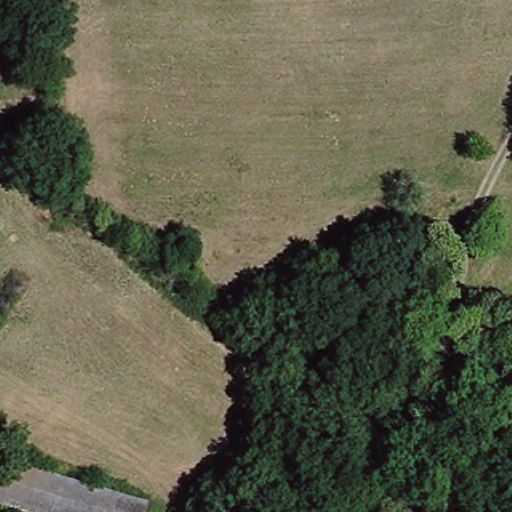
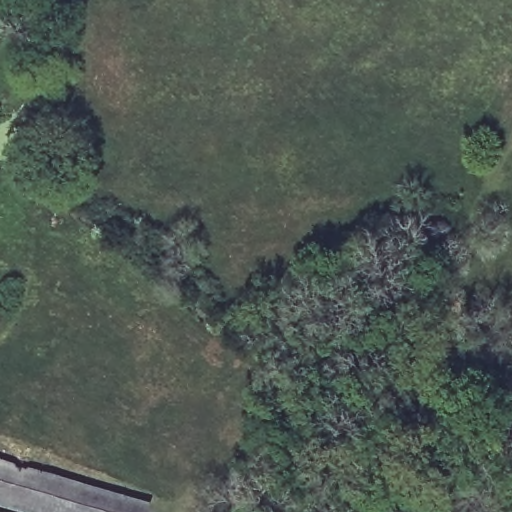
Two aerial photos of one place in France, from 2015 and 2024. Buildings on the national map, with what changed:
unchanged [(150,504),(147,512),(29,512),(0,503),(0,458),(150,504)]

